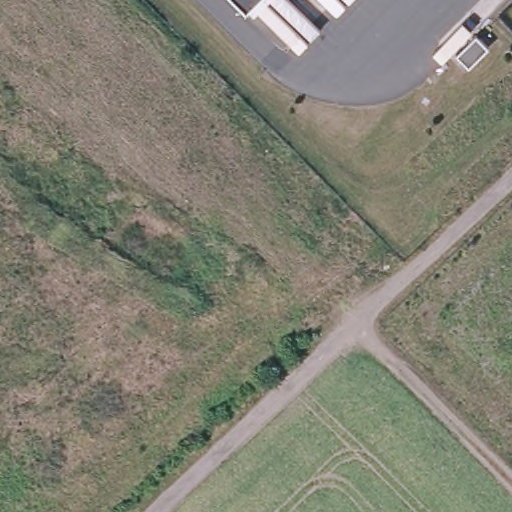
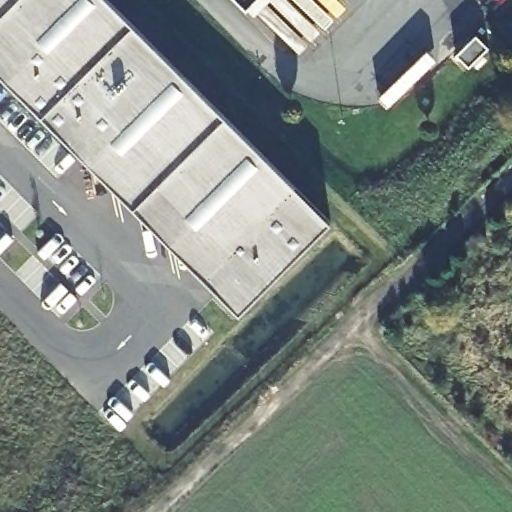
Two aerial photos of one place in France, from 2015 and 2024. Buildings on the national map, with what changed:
new [(240,313),(0,74),(0,0),(108,0),(330,222),(240,313)]
demolished [(238,0),(253,0),(245,7),(238,0)]
unchanged [(475,35),(488,48),(468,68),(455,55),(475,35)]

